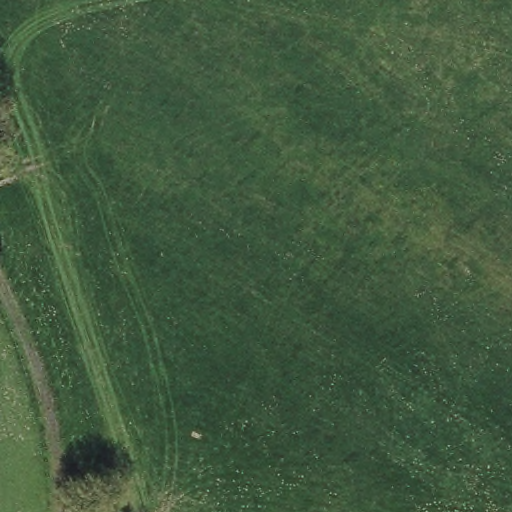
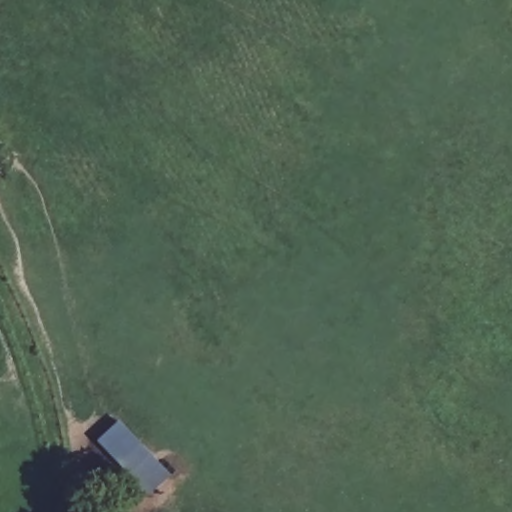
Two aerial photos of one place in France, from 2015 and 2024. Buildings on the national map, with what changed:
new [(118,421),(169,476),(147,495),(97,440),(118,421)]

